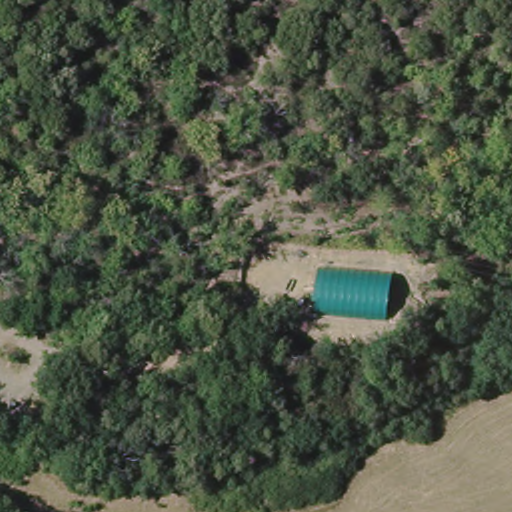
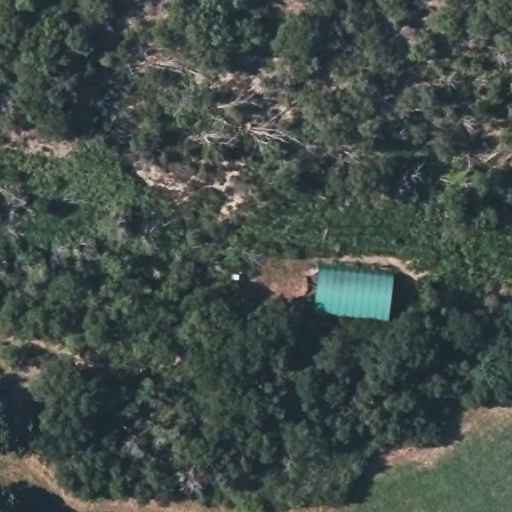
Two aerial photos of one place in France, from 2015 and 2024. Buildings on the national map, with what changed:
unchanged [(317,271),(392,280),(387,321),(312,315),(317,271)]

